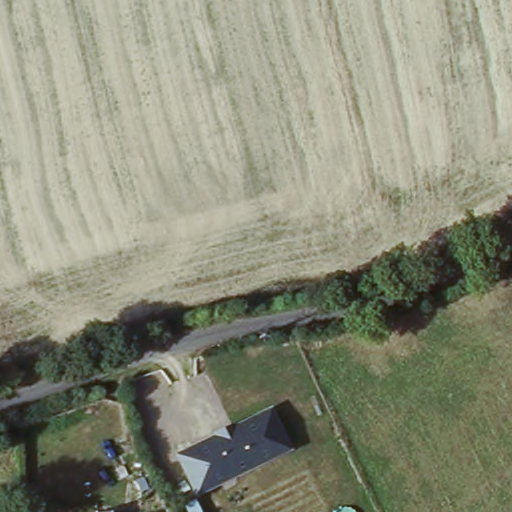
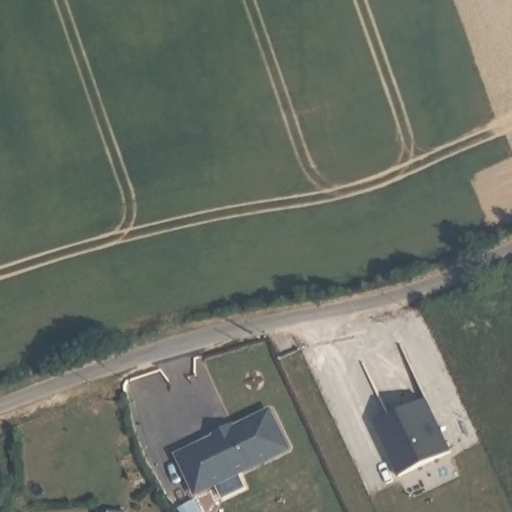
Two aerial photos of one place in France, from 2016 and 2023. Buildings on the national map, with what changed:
new [(423,395),(449,448),(398,472),(372,418),(423,395)]
unchanged [(294,446),(195,494),(174,456),(271,408),(294,446)]
unchanged [(123,512),(90,512),(90,511),(122,510),(123,512)]

